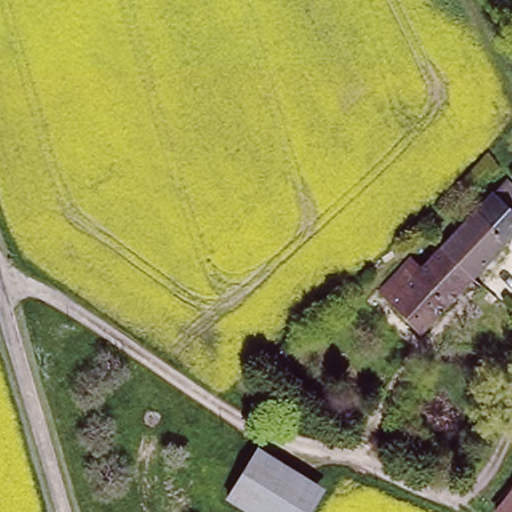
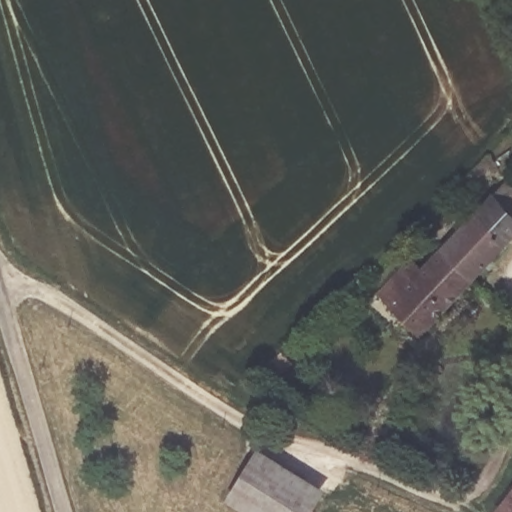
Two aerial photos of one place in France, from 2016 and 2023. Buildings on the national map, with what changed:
unchanged [(477,204),(492,188),(501,178),(512,188),(512,237),(477,204)]
unchanged [(512,237),(512,239),(475,281),(438,247),(477,204),(512,237)]
unchanged [(419,267),(438,247),(475,281),(425,334),(376,290),(408,256),(419,267)]
unchanged [(277,363),(285,371),(274,382),(266,373),(277,363)]
unchanged [(320,489),(305,512),(249,512),(221,496),(256,447),(320,489)]
unchanged [(498,511),(512,493),(512,512),(500,512),(498,511)]

